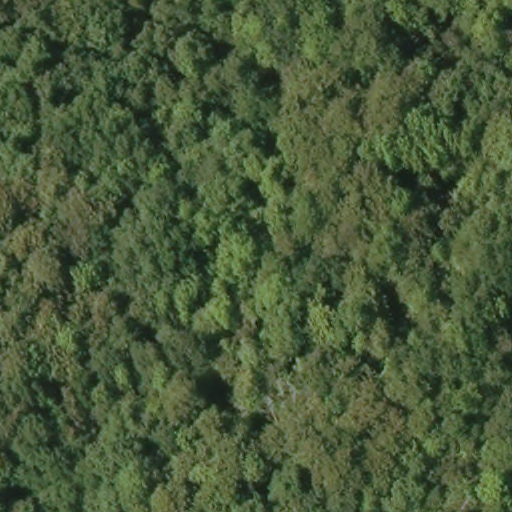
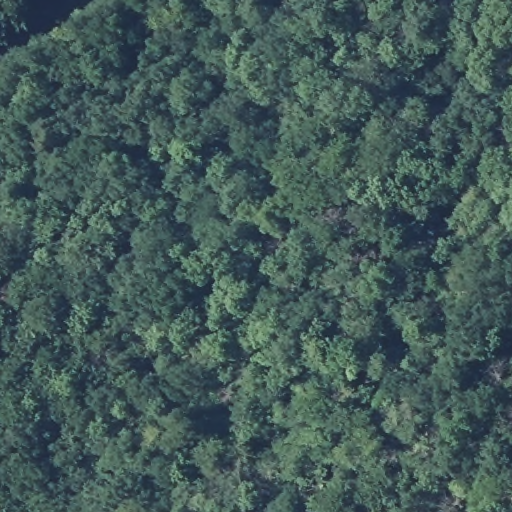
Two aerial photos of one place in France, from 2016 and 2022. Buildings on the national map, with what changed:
[]

